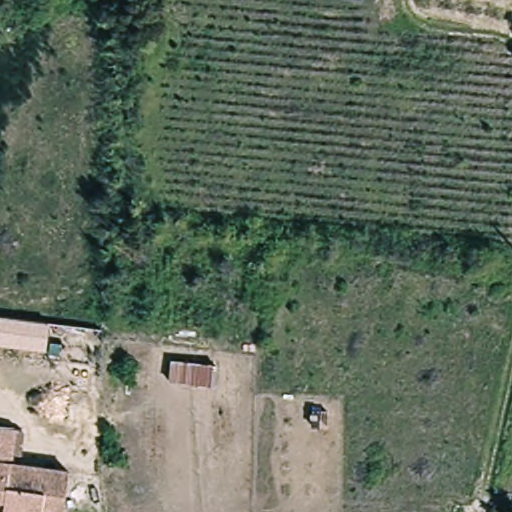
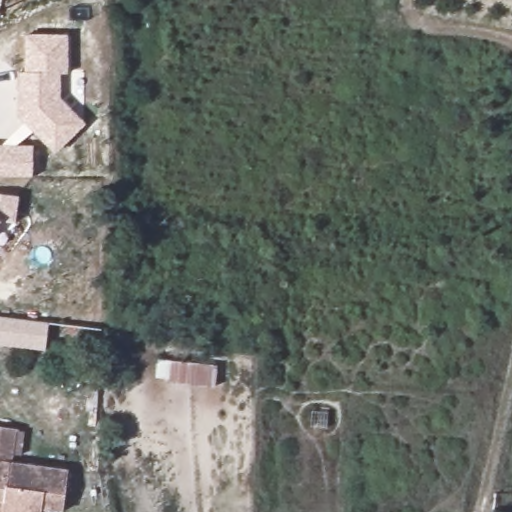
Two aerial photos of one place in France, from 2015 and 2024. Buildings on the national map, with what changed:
new [(68,74),(61,74),(59,96),(85,124),(54,153),(33,133),(17,145),(33,144),(32,177),(0,176),(0,144),(3,144),(24,123),(16,115),(18,71),(24,71),(25,34),(67,34),(68,74)]
new [(15,223),(0,220),(0,221),(0,194),(18,195),(15,223)]
new [(44,351),(0,346),(0,317),(48,323),(44,351)]
new [(214,388),(168,383),(168,379),(155,378),(157,359),(216,365),(214,388)]
unchanged [(13,459),(74,468),(68,508),(47,504),(46,512),(16,512),(3,511),(0,510),(0,423),(17,425),(13,459)]

